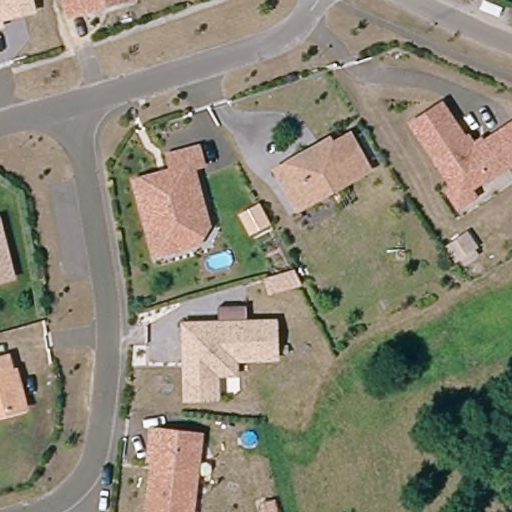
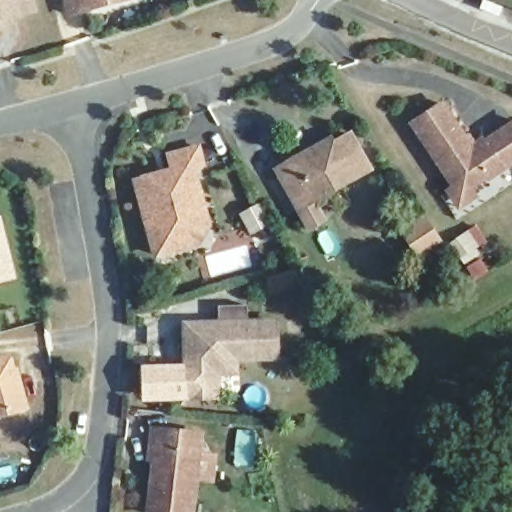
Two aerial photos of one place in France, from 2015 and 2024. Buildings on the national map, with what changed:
unchanged [(38,11),(5,20),(6,25),(0,26),(0,0),(36,0),(38,11)]
unchanged [(108,0),(110,7),(73,17),(69,0),(109,0),(108,0)]
unchanged [(459,206),(449,190),(455,186),(414,122),(444,102),(474,149),(512,124),(512,162),(490,176),(489,174),(470,186),(476,195),(459,206)]
unchanged [(295,207),(290,199),(275,167),(299,155),(306,151),(317,145),(329,140),(332,144),(349,135),(367,171),(308,201),(295,208),(295,207)]
unchanged [(202,245),(179,251),(158,257),(137,184),(161,177),(163,182),(171,180),(174,173),(170,157),(198,149),(203,165),(193,169),(201,196),(210,230),(202,245)]
unchanged [(16,277),(0,281),(0,214),(1,214),(16,277)]
unchanged [(469,227),(480,244),(455,260),(444,244),(469,227)]
unchanged [(182,321),(218,321),(217,306),(247,306),(247,319),(279,316),(281,360),(240,361),(240,376),(221,376),(221,398),(183,397),(182,321)]
unchanged [(13,368),(13,370),(18,368),(21,381),(28,405),(8,410),(0,412),(0,356),(9,354),(13,368)]
new [(183,365),(183,397),(221,398),(221,401),(141,403),(140,365),(183,365)]
unchanged [(206,434),(195,512),(153,512),(160,458),(155,457),(156,445),(159,428),(160,428),(206,434)]

